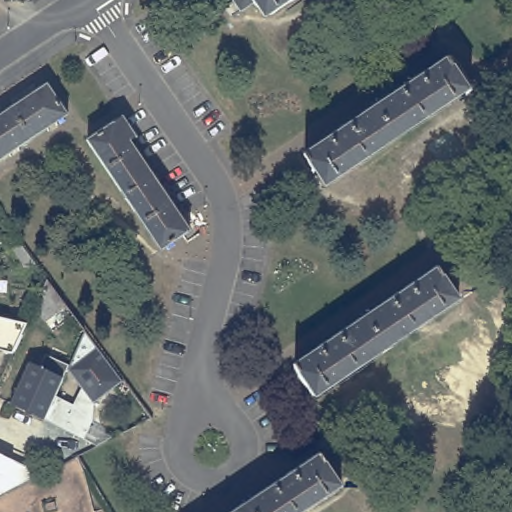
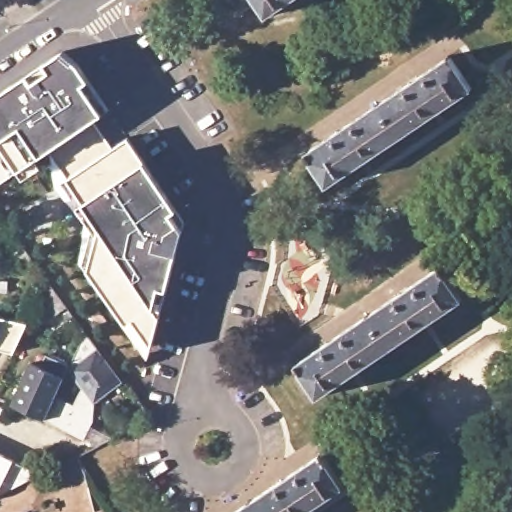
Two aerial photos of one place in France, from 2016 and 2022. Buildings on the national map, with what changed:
unchanged [(259,2),(244,12),(236,0),(294,0),(269,17),(259,2)]
new [(174,253),(167,287),(148,353),(147,355),(85,268),(101,233),(81,201),(86,198),(65,179),(71,175),(50,148),(39,155),(15,171),(19,176),(0,185),(0,91),(42,63),(65,51),(76,60),(88,78),(81,84),(101,113),(96,117),(116,146),(128,139),(144,162),(175,208),(168,213),(183,231),(177,253),(174,253)]
unchanged [(308,149),(454,52),(476,84),(330,182),(308,149)]
demolished [(71,114),(0,162),(0,118),(50,83),(71,114)]
demolished [(91,140),(126,116),(141,138),(135,142),(194,230),(165,249),(91,140)]
unchanged [(300,358),(445,262),(467,295),(323,392),(300,358)]
unchanged [(89,330),(69,345),(40,305),(52,280),(89,330)]
unchanged [(31,323),(17,353),(0,350),(0,316),(1,316),(31,323)]
unchanged [(96,401),(71,368),(71,366),(89,330),(126,379),(96,401)]
new [(94,425),(114,436),(98,446),(44,421),(10,405),(30,361),(44,366),(46,353),(73,363),(71,366),(71,368),(66,367),(56,395),(74,404),(80,388),(84,385),(96,401),(94,425)]
unchanged [(0,449),(51,474),(0,500),(0,449)]
unchanged [(348,482),(302,512),(231,512),(327,450),(348,482)]

